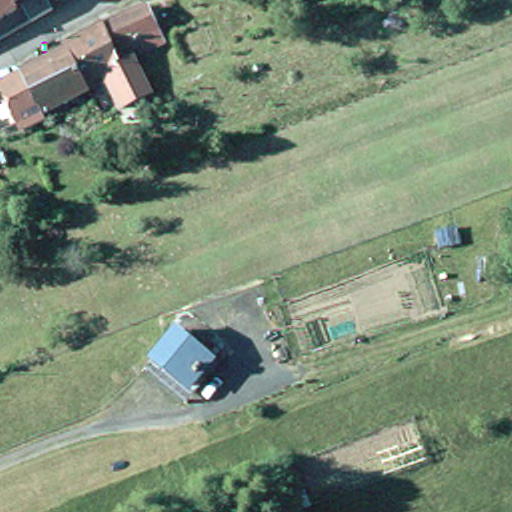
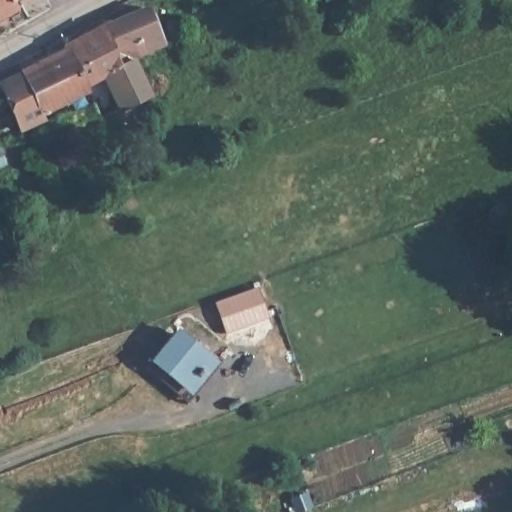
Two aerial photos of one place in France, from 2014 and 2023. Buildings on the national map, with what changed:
unchanged [(2,20),(0,21),(0,0),(9,0),(16,12),(2,20)]
unchanged [(20,5),(28,0),(47,0),(52,8),(30,20),(20,5)]
unchanged [(149,5),(165,40),(152,46),(145,49),(134,54),(118,61),(115,56),(102,24),(149,5)]
unchanged [(124,105),(105,70),(85,80),(67,45),(65,42),(102,24),(115,56),(118,61),(134,54),(137,60),(152,92),(124,105)]
unchanged [(15,124),(2,99),(0,94),(0,82),(12,76),(11,75),(67,45),(85,80),(88,87),(32,116),(31,116),(16,124),(15,124)]
new [(258,285),(269,317),(225,332),(214,301),(258,285)]
unchanged [(220,364),(192,399),(150,365),(177,330),(220,364)]

